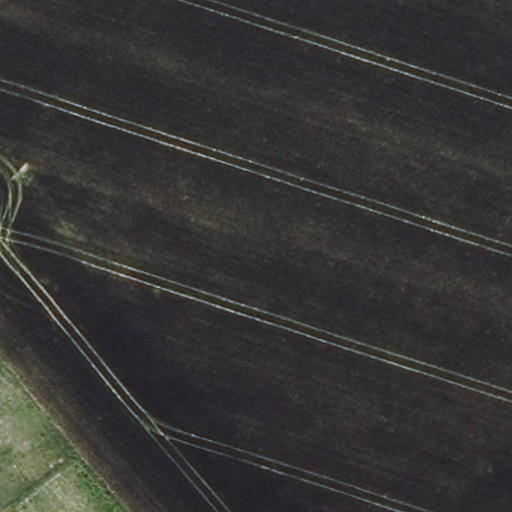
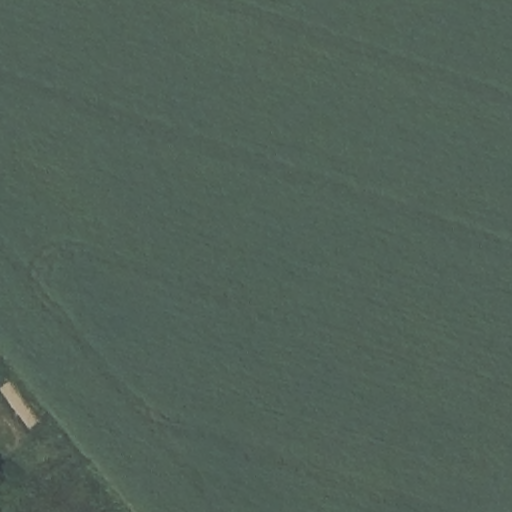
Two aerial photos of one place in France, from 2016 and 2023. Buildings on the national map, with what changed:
[]

